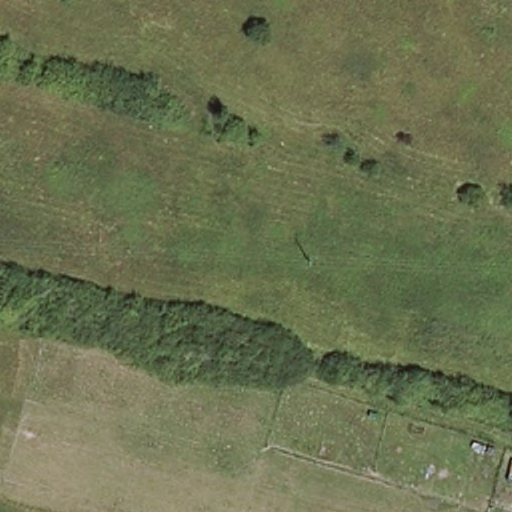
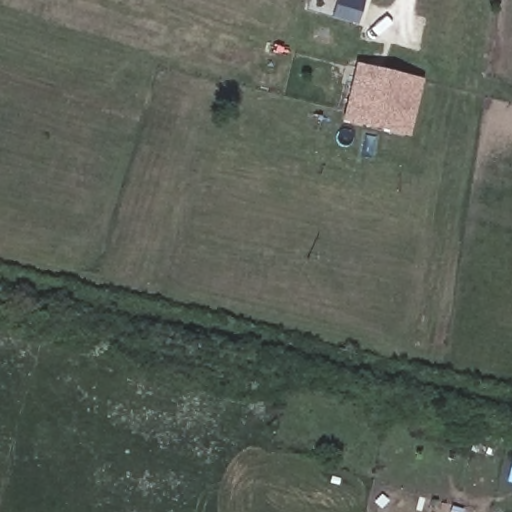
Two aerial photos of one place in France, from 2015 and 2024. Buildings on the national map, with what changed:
new [(342,120),(355,63),(422,79),(408,135),(342,120)]

